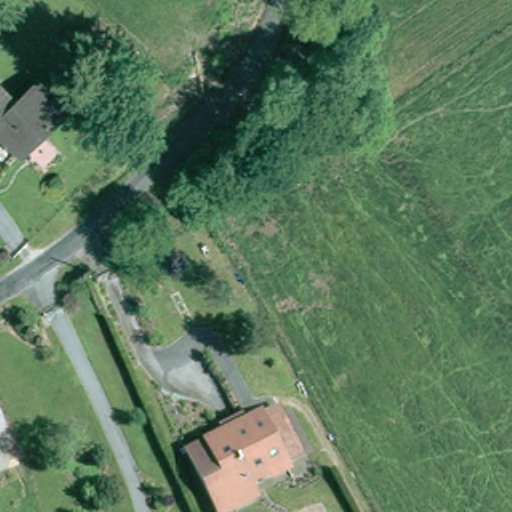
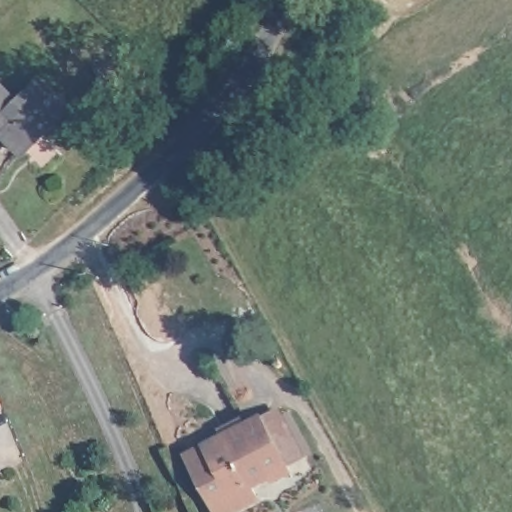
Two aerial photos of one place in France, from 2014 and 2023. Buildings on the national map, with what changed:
unchanged [(17,105),(40,86),(69,109),(20,152),(0,129),(0,85),(17,105)]
unchanged [(249,417),(282,399),(312,450),(276,470),(249,417)]
unchanged [(255,481),(261,492),(223,510),(192,446),(249,417),(276,470),(255,481)]

